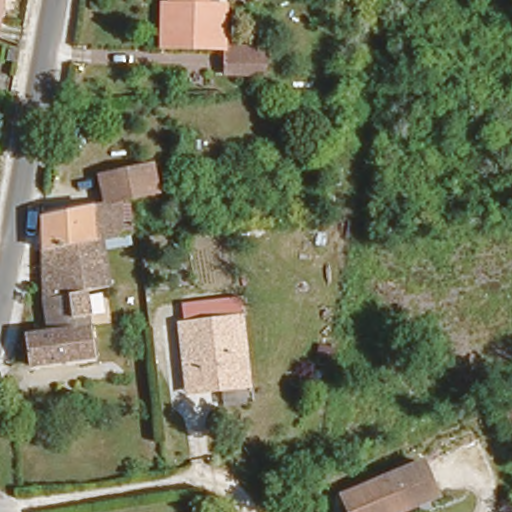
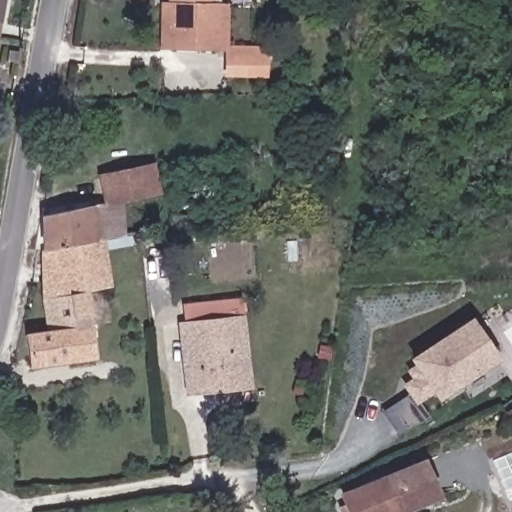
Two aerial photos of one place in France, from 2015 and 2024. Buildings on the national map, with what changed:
unchanged [(0,10),(0,0),(1,0),(0,10)]
unchanged [(166,5),(175,4),(175,0),(204,0),(203,4),(216,4),(226,4),(226,49),(216,49),(166,50),(155,50),(155,5),(166,5)]
unchanged [(225,57),(264,57),(263,76),(225,75),(225,57)]
unchanged [(115,200),(119,237),(102,240),(42,249),(41,213),(104,203),(102,173),(142,170),(151,169),(152,198),(140,198),(115,200)]
unchanged [(24,334),(46,331),(42,249),(102,240),(108,291),(85,295),(96,358),(28,367),(24,334)]
unchanged [(182,354),(212,354),(211,340),(182,340),(181,321),(234,318),(234,324),(245,321),(248,394),(235,395),(210,395),(184,395),(184,385),(182,354)]
new [(428,415),(398,435),(381,411),(408,394),(402,384),(411,378),(406,370),(413,365),(409,358),(470,318),(498,359),(438,399),(432,392),(420,402),(428,415)]
unchanged [(341,508),(333,491),(422,452),(441,497),(404,512),(382,512),(371,492),(341,508)]
unchanged [(371,492),(382,512),(344,512),(341,508),(371,492)]

